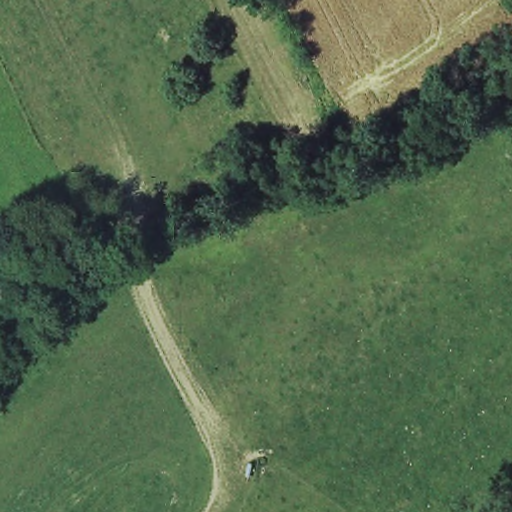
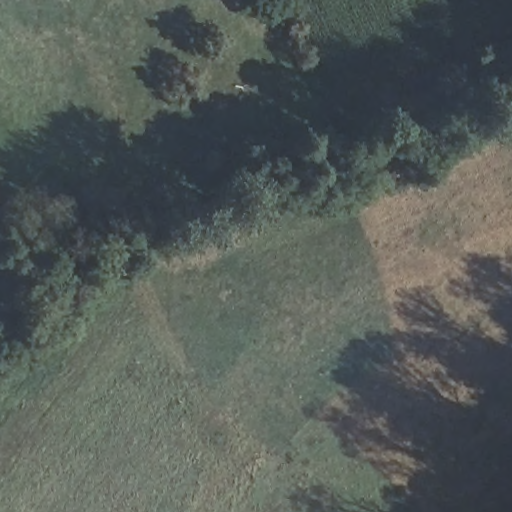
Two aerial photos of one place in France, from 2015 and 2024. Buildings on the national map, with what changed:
[]

